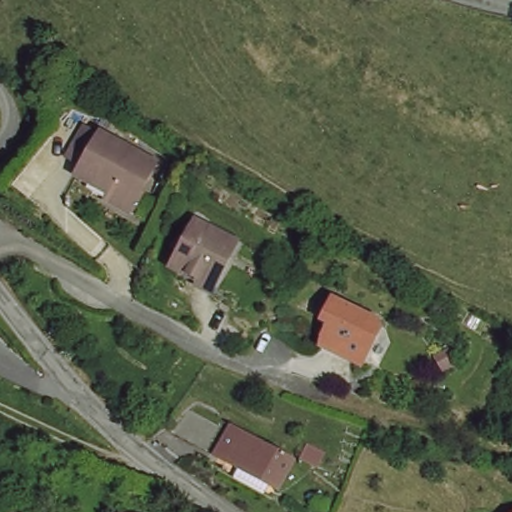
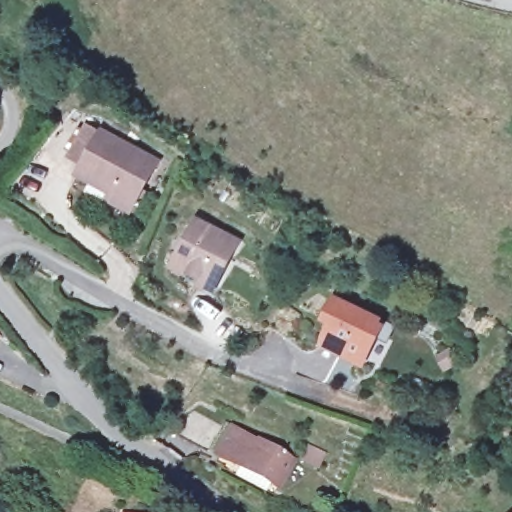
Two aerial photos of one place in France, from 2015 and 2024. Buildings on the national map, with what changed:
unchanged [(77,161),(62,154),(81,120),(152,156),(125,207),(102,195),(105,190),(72,172),(77,161)]
unchanged [(232,240),(210,287),(165,267),(187,219),(232,240)]
unchanged [(317,341),(322,330),(327,321),(318,317),(330,295),(374,315),(368,328),(373,330),(363,356),(338,345),(335,350),(317,341)]
unchanged [(217,431),(203,455),(172,439),(186,415),(217,431)]
unchanged [(290,457),(274,488),(213,456),(229,426),(290,457)]
unchanged [(320,460),(315,469),(297,460),(302,451),(320,460)]

